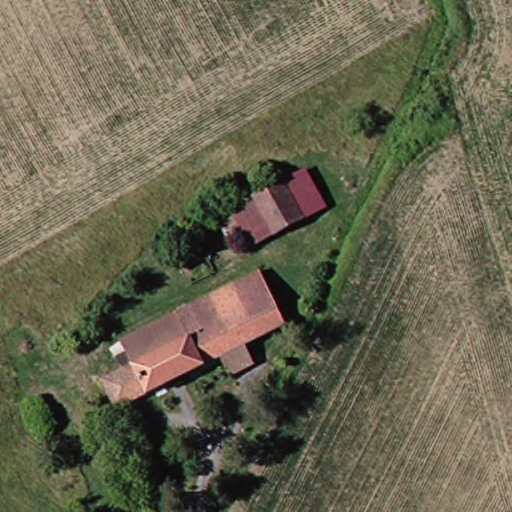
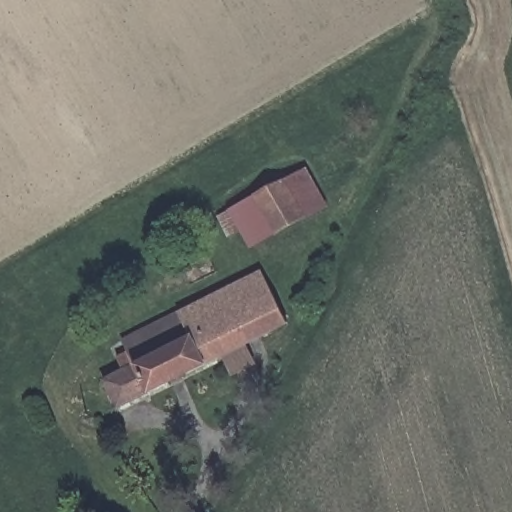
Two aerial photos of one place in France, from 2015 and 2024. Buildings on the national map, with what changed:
unchanged [(260,244),(242,205),(292,182),(310,218),(260,244)]
unchanged [(239,374),(230,356),(175,382),(123,408),(110,380),(141,364),(129,338),(239,284),(266,270),(277,291),(293,323),(252,345),(261,363),(239,374)]

